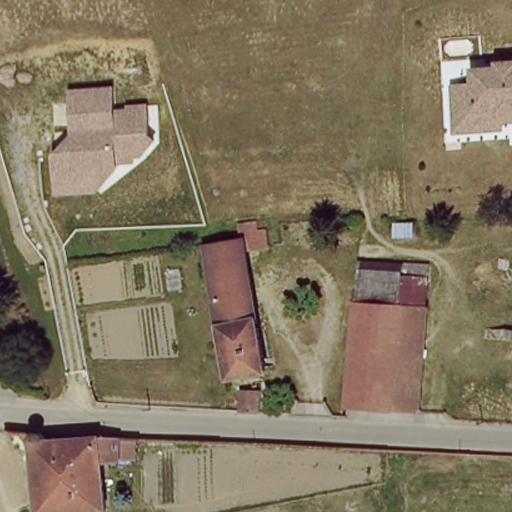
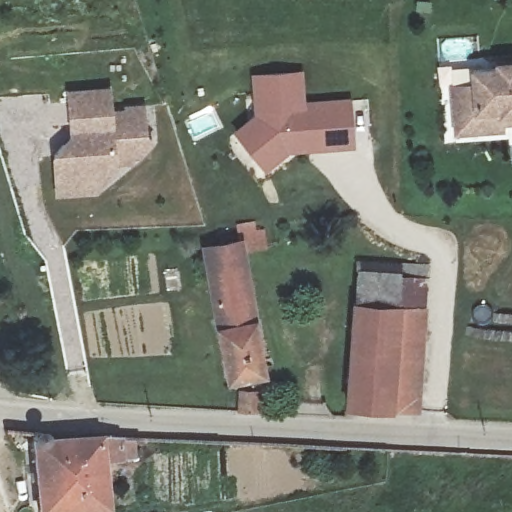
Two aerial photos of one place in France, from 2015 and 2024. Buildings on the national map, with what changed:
unchanged [(461,135),(455,87),(475,85),(474,72),(512,69),(512,131),(461,135)]
new [(256,114),(254,75),(305,72),(307,101),(350,99),(356,148),(289,153),(267,171),(234,132),(256,114)]
unchanged [(52,155),(71,134),(67,89),(114,87),(115,107),(146,104),(149,135),(157,143),(138,160),(121,162),(120,171),(98,194),(57,195),(52,155)]
unchanged [(265,376),(227,380),(205,244),(243,239),(265,376)]
unchanged [(360,261),(406,265),(402,297),(355,292),(360,261)]
unchanged [(428,300),(419,396),(349,395),(355,292),(402,297),(428,300)]
unchanged [(234,419),(236,405),(258,406),(257,417),(234,419)]
unchanged [(115,446),(119,465),(100,467),(106,512),(32,512),(26,452),(29,451),(29,441),(31,437),(42,439),(41,443),(100,438),(98,448),(115,446)]

